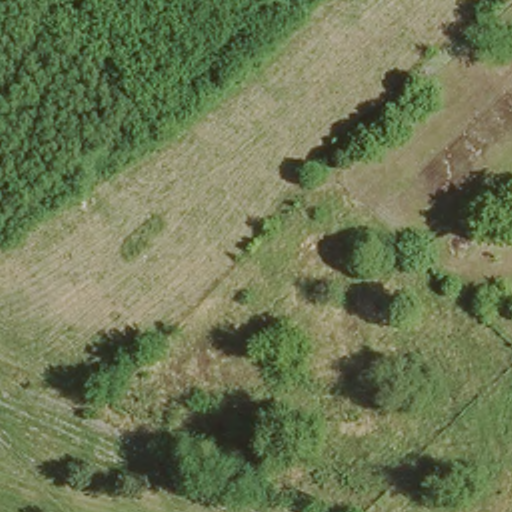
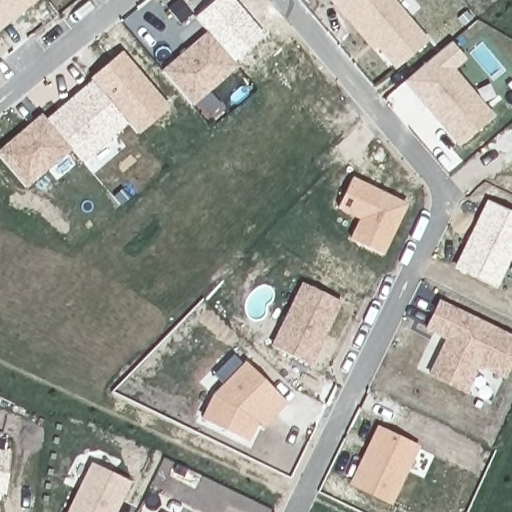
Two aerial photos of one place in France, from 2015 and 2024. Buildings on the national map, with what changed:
new [(0,33),(0,0),(41,0),(0,33)]
new [(265,36),(232,62),(237,68),(210,92),(220,106),(209,117),(196,102),(192,106),(160,70),(206,30),(196,17),(215,0),(235,0),(265,36)]
new [(428,39),(392,71),(330,2),(332,0),(395,0),(428,39)]
new [(494,117),(458,147),(403,84),(453,40),(466,59),(454,70),(494,117)]
new [(169,106),(137,132),(129,122),(83,161),(72,147),(26,187),(0,155),(0,147),(41,112),(45,119),(122,51),(169,106)]
new [(408,204),(384,256),(350,238),(358,219),(338,208),(353,177),(408,204)]
new [(486,200),(512,213),(512,258),(496,290),(452,268),(486,200)]
new [(301,284),(341,302),(310,366),(271,348),(301,284)]
new [(465,395),(427,376),(445,340),(424,330),(438,300),(512,336),(512,367),(505,381),(478,370),(465,395)]
new [(265,427),(260,422),(249,441),(201,417),(212,395),(223,385),(214,375),(233,355),(242,364),(245,361),(287,402),(265,427)]
new [(390,506),(348,485),(377,426),(420,447),(390,506)]
new [(7,453),(2,495),(0,494),(0,452),(7,453)]
new [(127,492),(117,512),(66,512),(90,462),(120,477),(116,487),(127,492)]

